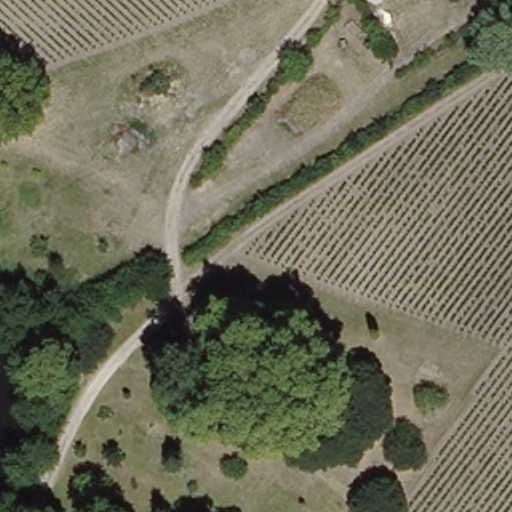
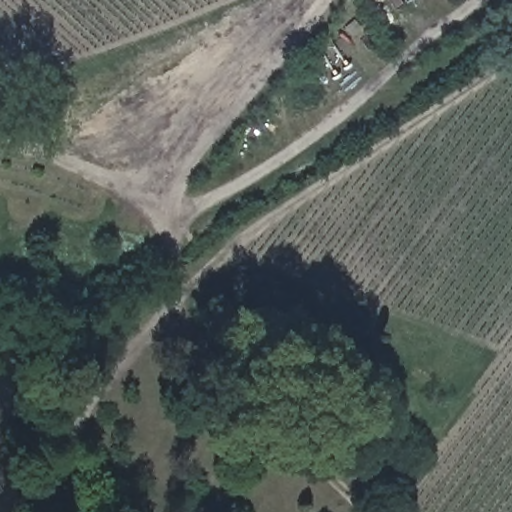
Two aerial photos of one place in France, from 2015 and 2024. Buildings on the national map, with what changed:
[]

